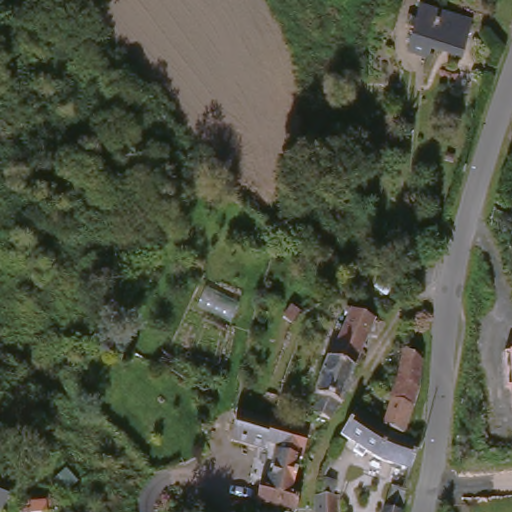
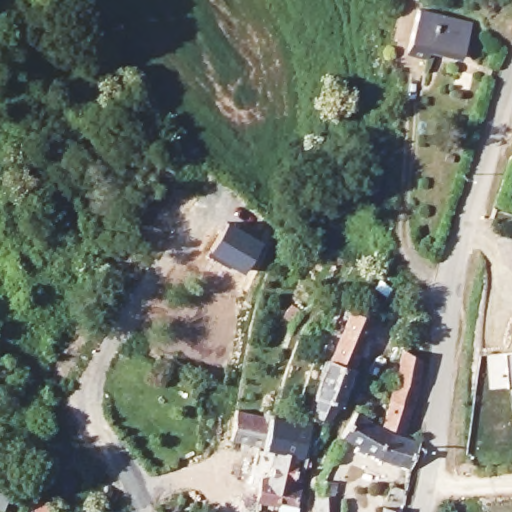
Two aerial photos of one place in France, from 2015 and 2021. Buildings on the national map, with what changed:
unchanged [(472,27),(462,66),(403,52),(416,12),(472,27)]
new [(229,222),(264,245),(246,273),(234,264),(231,269),(209,254),(229,222)]
unchanged [(319,403),(344,341),(354,316),(377,325),(367,351),(342,413),(339,412),(332,428),(318,421),(317,421),(319,415),(323,405),(319,403)]
unchanged [(508,388),(504,353),(511,352),(512,352),(512,387),(508,388)]
unchanged [(393,409),(399,389),(406,358),(427,368),(423,395),(416,418),(408,442),(386,432),(393,409)]
unchanged [(258,489),(260,482),(267,483),(274,450),(267,449),(267,454),(229,445),(236,415),(272,425),(314,434),(307,468),(302,468),(296,495),(298,496),(295,512),(273,512),(256,509),(258,489)]
unchanged [(344,443),(356,421),(393,441),(403,444),(407,446),(423,451),(417,474),(383,464),(344,443)]
unchanged [(334,512),(319,512),(319,489),(333,489),(334,512)]

